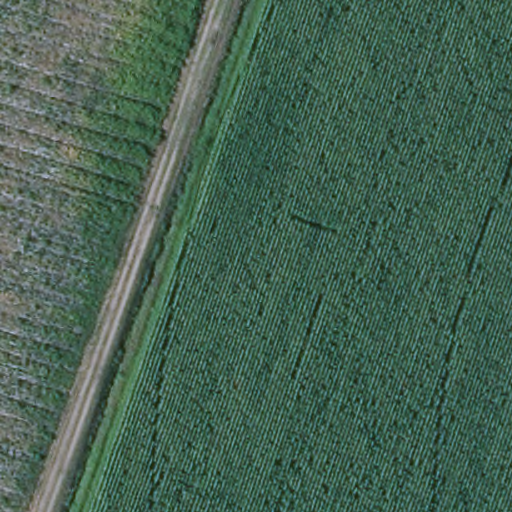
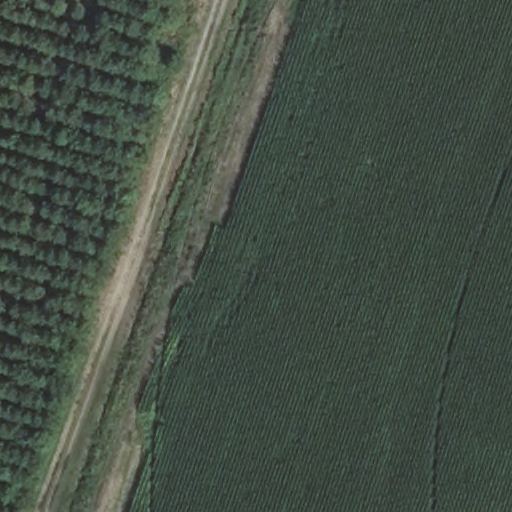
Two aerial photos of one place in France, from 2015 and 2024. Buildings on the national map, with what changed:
[]

